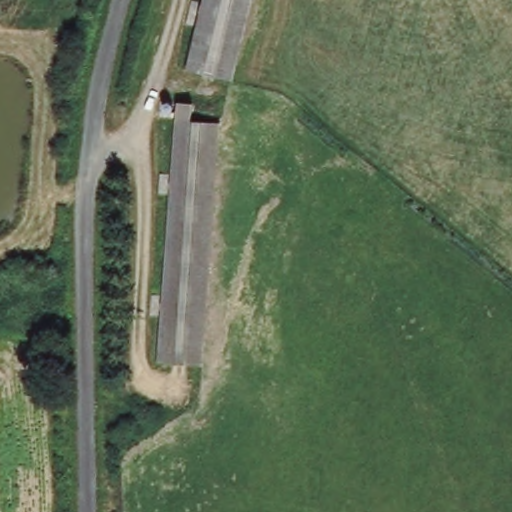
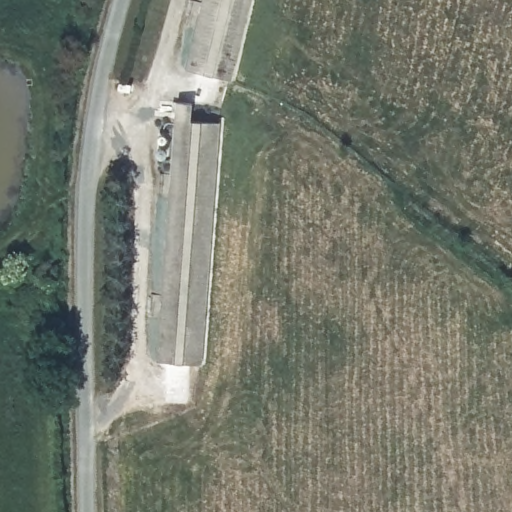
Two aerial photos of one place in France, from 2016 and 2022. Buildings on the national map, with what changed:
unchanged [(188,64),(202,0),(248,0),(231,75),(188,64)]
unchanged [(187,122),(215,124),(212,164),(204,367),(160,365),(163,275),(172,105),(188,108),(187,122)]

